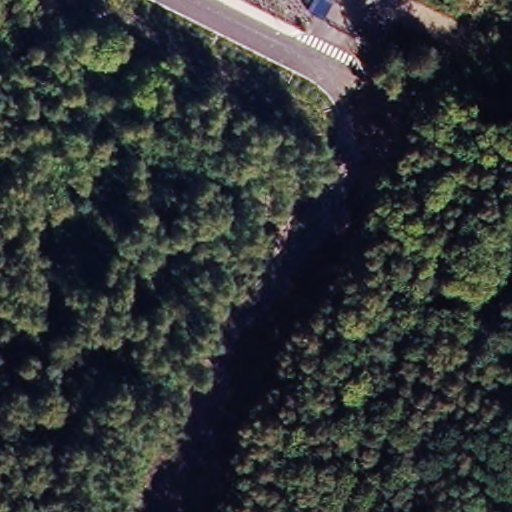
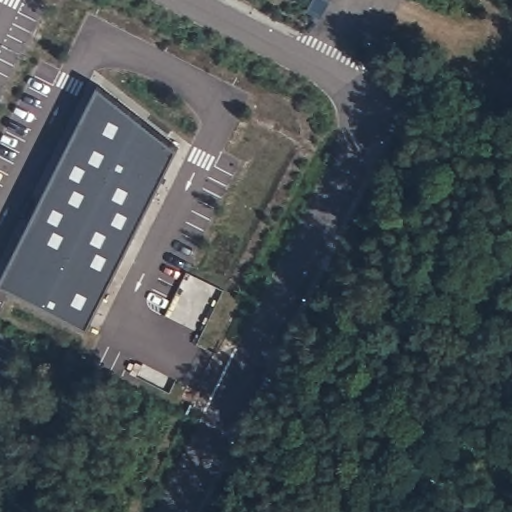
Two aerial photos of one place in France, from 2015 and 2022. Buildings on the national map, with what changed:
new [(309,3),(311,0),(330,0),(324,10),(309,3)]
new [(110,78),(188,138),(105,320),(11,277),(110,78)]

